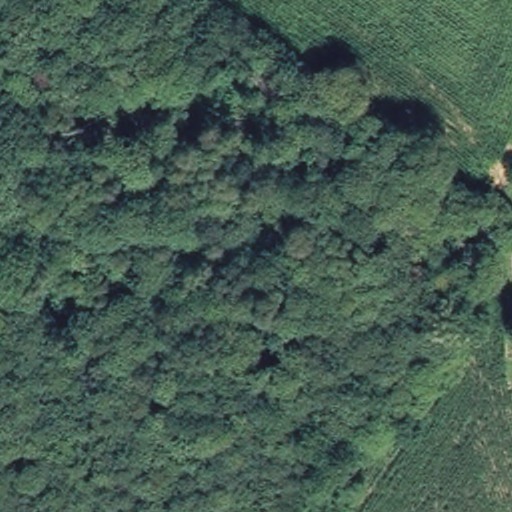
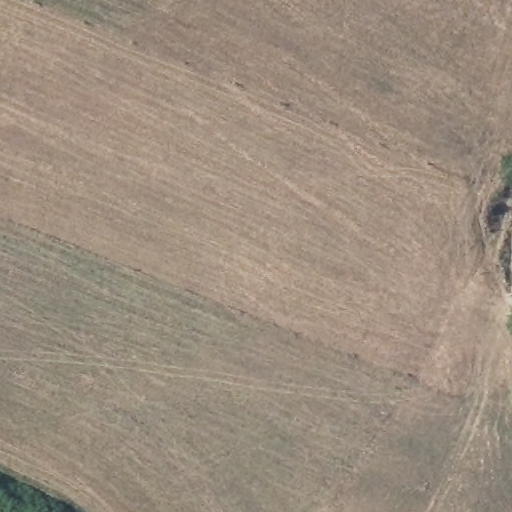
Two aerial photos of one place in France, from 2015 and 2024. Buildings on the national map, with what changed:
[]

